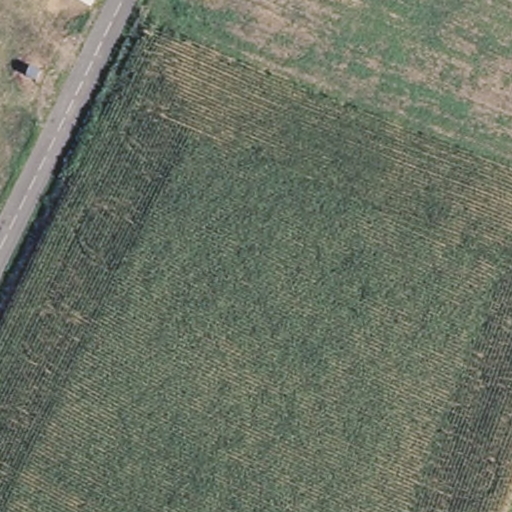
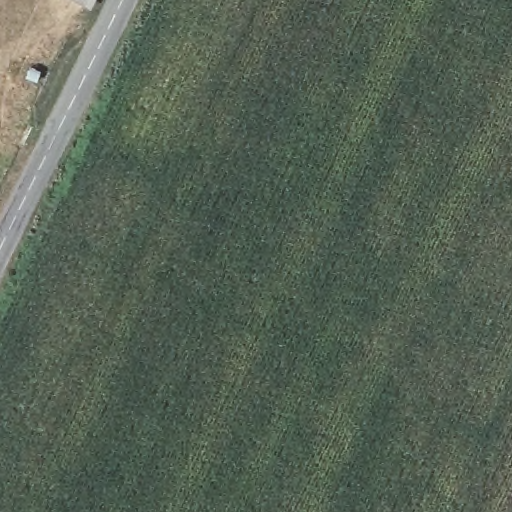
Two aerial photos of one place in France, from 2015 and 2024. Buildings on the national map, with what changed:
unchanged [(90,0),(104,0),(101,7),(90,0)]

